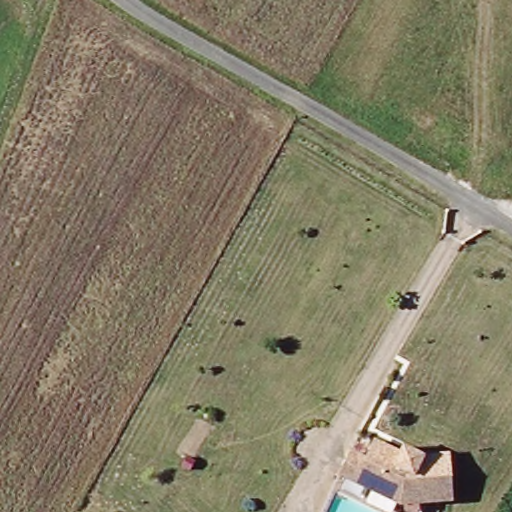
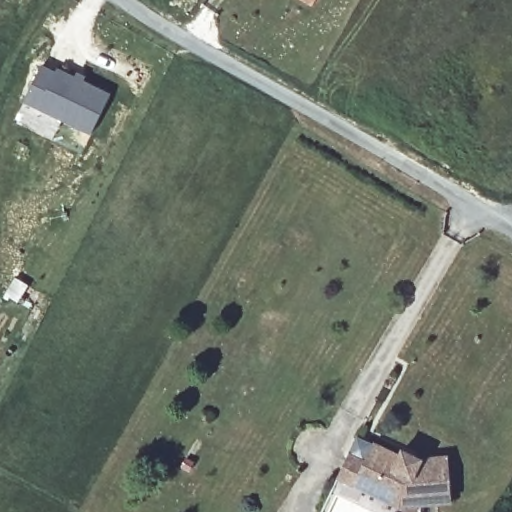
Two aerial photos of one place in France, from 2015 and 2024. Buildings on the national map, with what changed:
new [(311,7),(300,0),(315,0),(311,7)]
new [(42,66),(53,71),(56,66),(108,94),(90,134),(25,102),(42,66)]
unchanged [(340,478),(358,441),(406,462),(382,502),(340,478)]
unchanged [(422,469),(427,461),(450,460),(452,506),(398,510),(382,502),(406,462),(422,469)]

